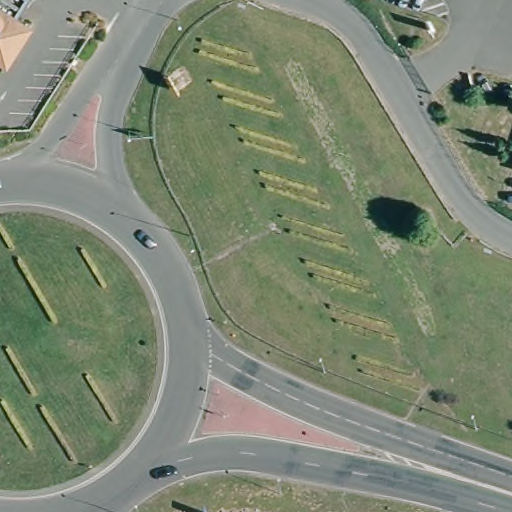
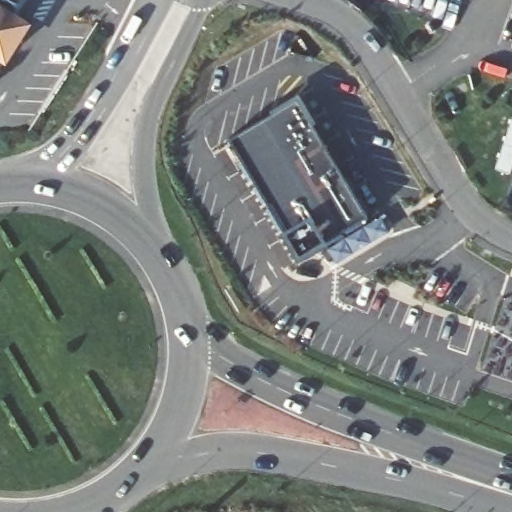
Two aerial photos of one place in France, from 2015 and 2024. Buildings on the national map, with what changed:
unchanged [(5,65),(0,62),(0,0),(24,0),(26,1),(13,21),(27,29),(5,65)]
new [(297,100),(367,222),(298,268),(230,142),(297,100)]

